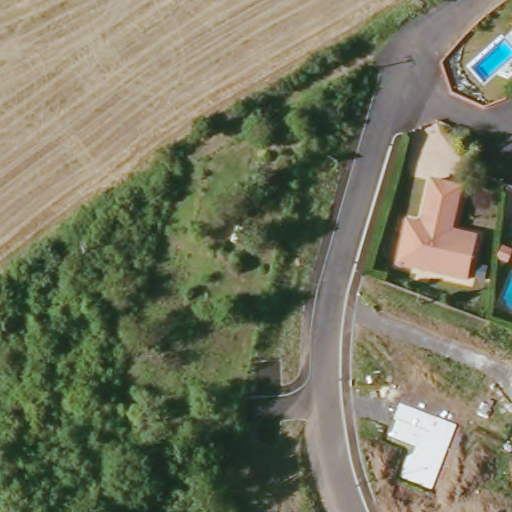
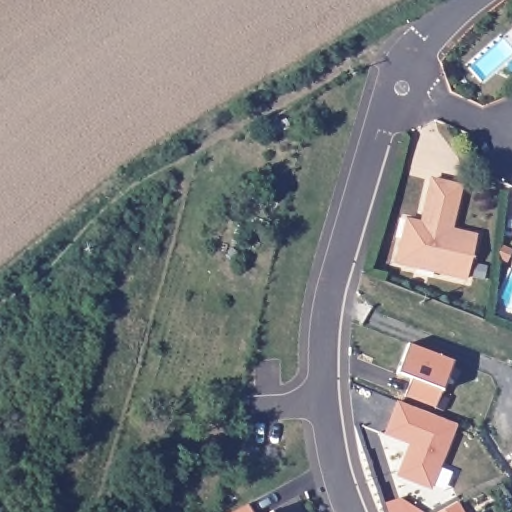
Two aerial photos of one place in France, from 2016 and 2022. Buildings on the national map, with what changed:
unchanged [(512,27),(510,26),(512,24),(512,27)]
unchanged [(403,221),(416,225),(428,181),(457,189),(450,215),(470,220),(472,225),(469,237),(472,239),(461,280),(391,263),(398,237),(403,221)]
new [(406,345),(452,362),(434,408),(403,397),(410,379),(395,375),(406,345)]
unchanged [(396,477),(403,455),(411,453),(413,447),(389,437),(395,421),(392,420),(398,402),(455,424),(430,488),(396,477)]
new [(251,512),(237,512),(247,506),(251,512)]

